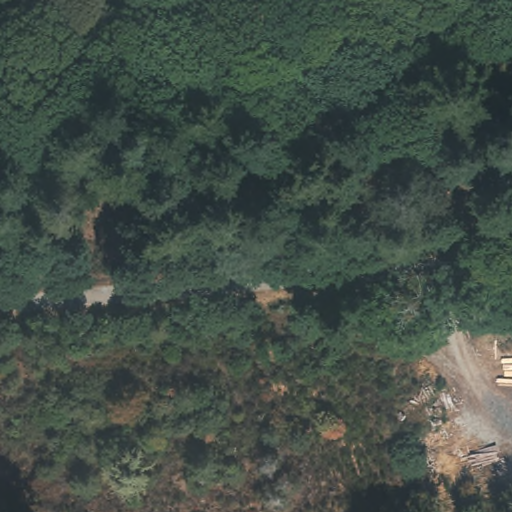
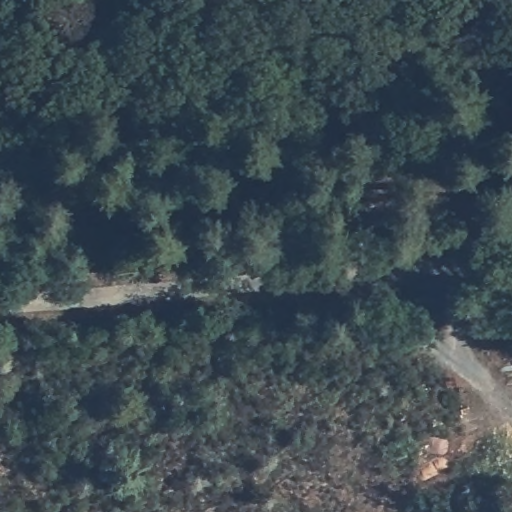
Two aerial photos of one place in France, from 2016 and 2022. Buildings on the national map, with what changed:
[]

